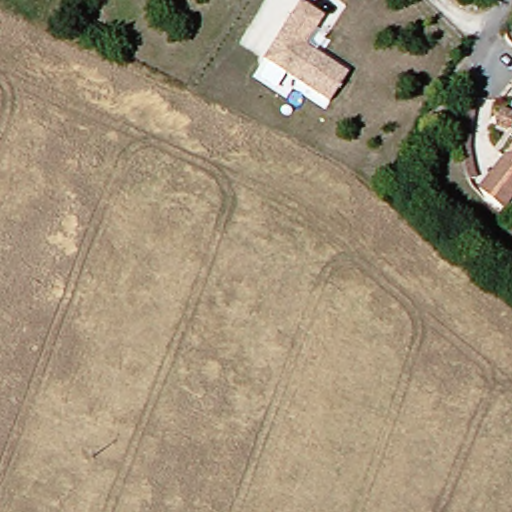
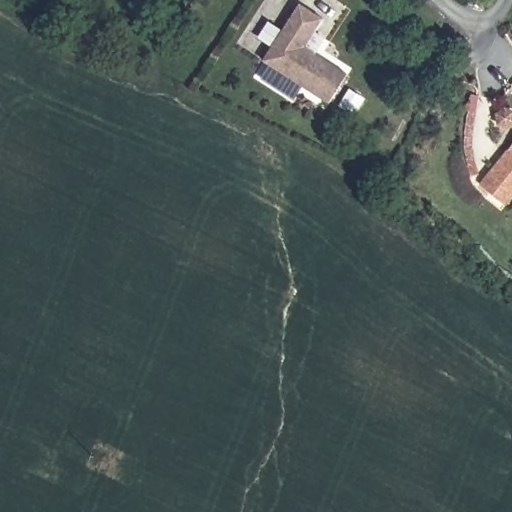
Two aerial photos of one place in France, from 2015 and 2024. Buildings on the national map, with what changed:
unchanged [(348,77),(329,105),(265,61),(303,5),(325,21),(308,46),(308,50),(348,77)]
unchanged [(512,186),(496,205),(474,188),(510,138),(512,139),(512,186)]

